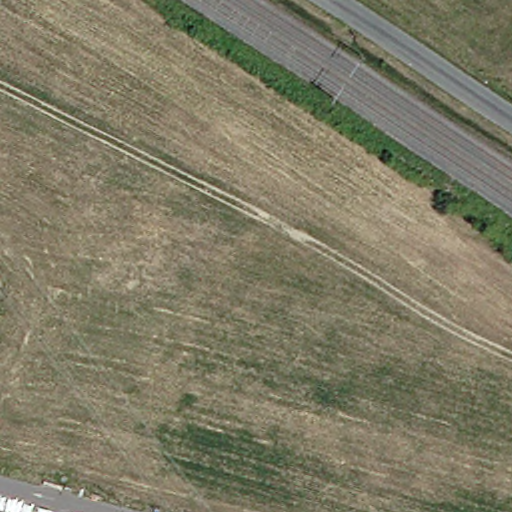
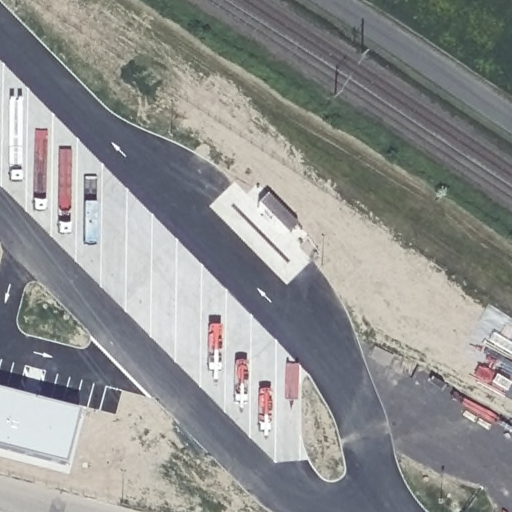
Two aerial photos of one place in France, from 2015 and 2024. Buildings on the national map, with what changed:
new [(64,464),(0,448),(0,390),(78,410),(64,464)]

